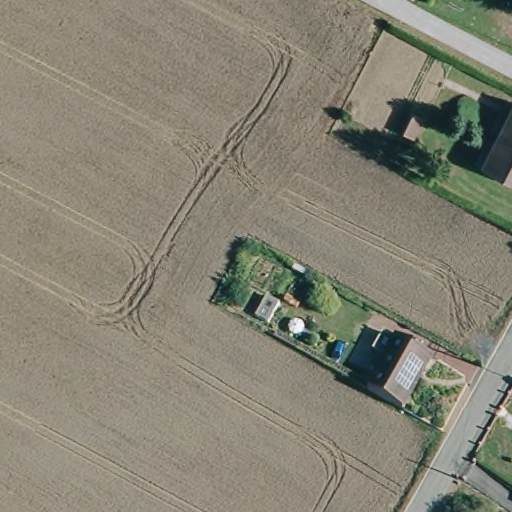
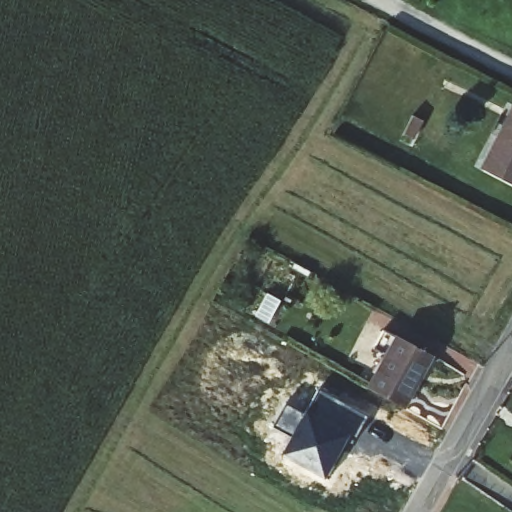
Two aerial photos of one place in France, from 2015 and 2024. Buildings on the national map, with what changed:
unchanged [(512,109),(512,185),(481,169),(512,109)]
unchanged [(411,115),(423,120),(413,140),(401,135),(411,115)]
unchanged [(385,355),(372,348),(383,329),(432,356),(403,408),(367,388),(385,355)]
new [(291,436),(272,426),(285,402),(304,413),(305,410),(319,388),(367,416),(356,437),(350,435),(325,479),(281,454),(291,436)]

